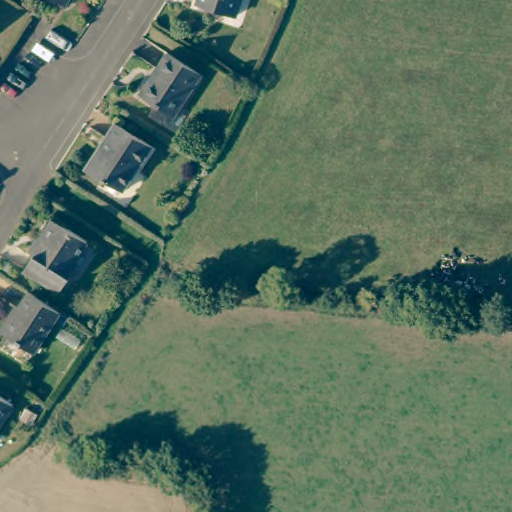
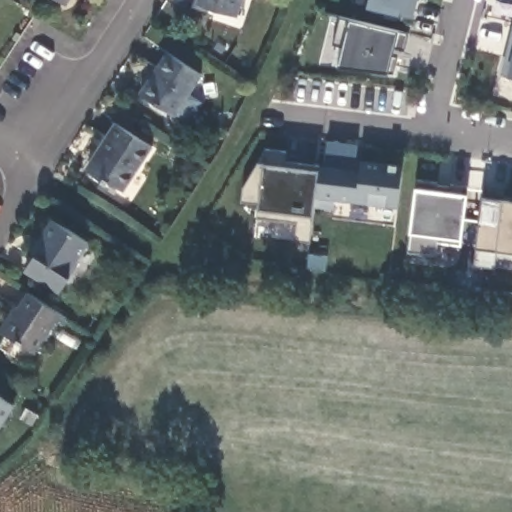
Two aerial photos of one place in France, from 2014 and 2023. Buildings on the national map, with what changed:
unchanged [(68,0),(70,0),(69,1),(68,0)]
unchanged [(198,0),(251,0),(244,17),(198,0)]
new [(399,17),(388,15),(389,10),(370,5),(371,0),(420,0),(416,16),(400,12),(399,17)]
new [(340,14),(410,30),(405,49),(395,46),(394,52),(399,54),(395,71),(338,65),(343,44),(333,42),(340,14)]
new [(500,75),(512,27),(512,78),(506,76),(500,75)]
unchanged [(178,111),(145,90),(172,49),(205,70),(178,111)]
unchanged [(156,143),(127,187),(94,165),(113,137),(110,135),(120,120),(156,143)]
new [(297,224),(257,219),(259,206),(242,203),(243,186),(263,164),(265,150),(285,152),(283,166),(317,170),(319,165),(325,165),(326,142),(358,146),(357,159),(403,165),(397,209),(316,199),(313,216),(310,243),(294,241),(297,224)]
new [(410,231),(415,189),(416,180),(467,187),(466,195),(461,240),(459,245),(439,243),(436,257),(408,254),(410,231)]
new [(499,265),(478,263),(480,245),(488,184),(509,186),(507,204),(512,205),(512,255),(500,254),(499,265)]
unchanged [(92,238),(81,256),(82,257),(70,276),(71,277),(63,288),(29,266),(36,256),(34,255),(47,235),(45,234),(57,215),(92,238)]
new [(475,285),(460,284),(462,269),(477,270),(475,285)]
unchanged [(63,321),(54,316),(33,347),(2,327),(27,288),(68,315),(63,321)]
unchanged [(18,402),(0,430),(0,391),(18,402)]

